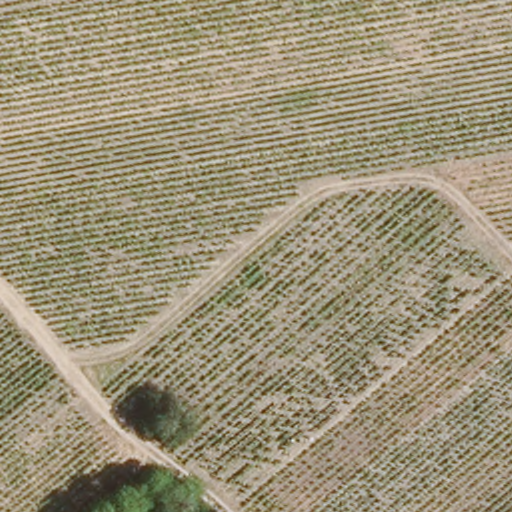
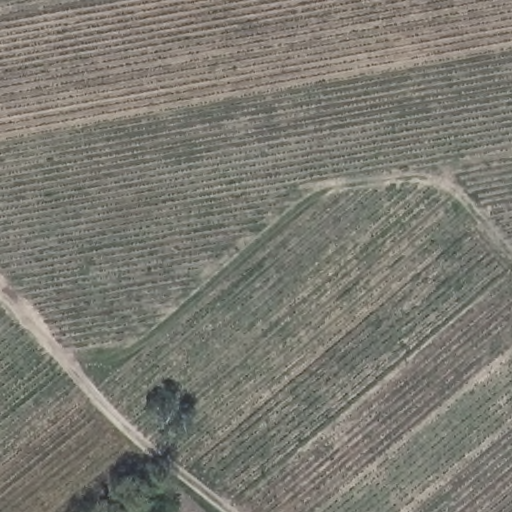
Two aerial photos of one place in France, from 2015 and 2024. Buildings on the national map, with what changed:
[]

